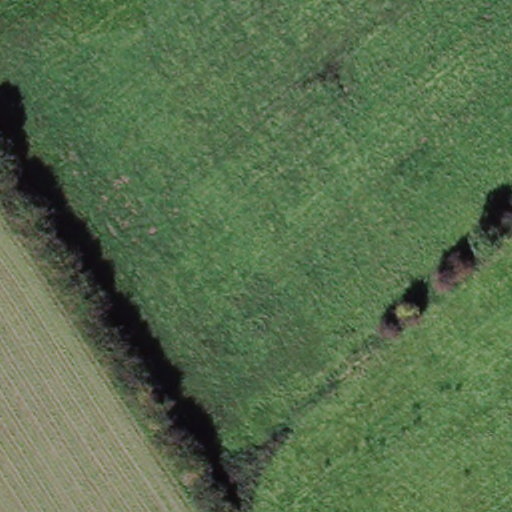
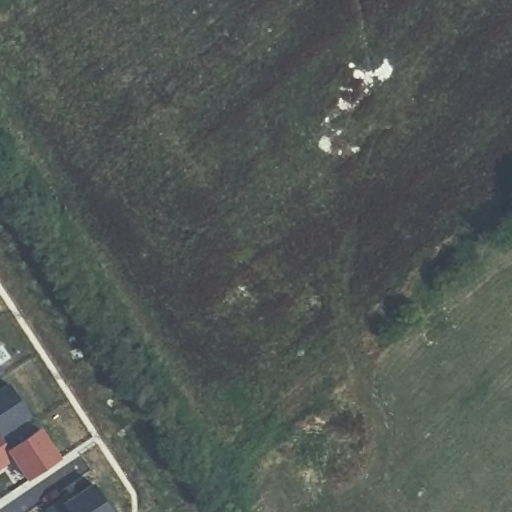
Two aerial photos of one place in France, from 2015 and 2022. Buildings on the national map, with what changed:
new [(0,374),(0,371),(1,373),(0,374)]
new [(31,418),(1,439),(0,438),(0,395),(10,388),(31,418)]
new [(27,421),(36,435),(10,452),(15,460),(0,471),(0,437),(1,439),(27,421)]
new [(60,463),(30,483),(10,452),(40,433),(60,463)]
new [(112,512),(68,512),(65,508),(95,487),(112,512)]
new [(76,494),(79,498),(66,507),(65,508),(68,512),(50,512),(63,503),(76,494)]

